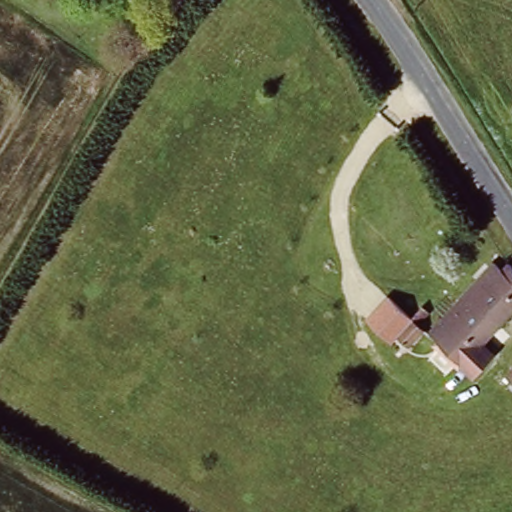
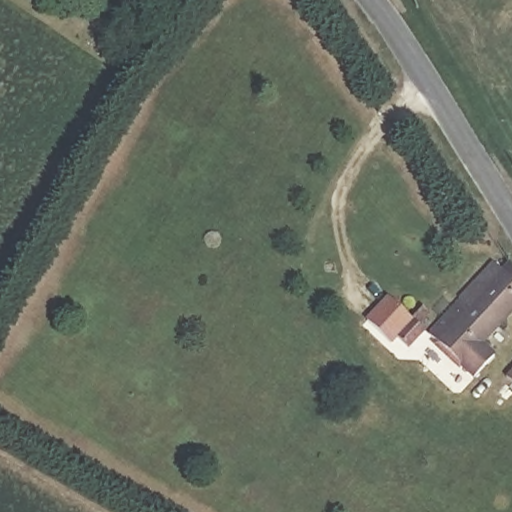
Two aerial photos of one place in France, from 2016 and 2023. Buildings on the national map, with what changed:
unchanged [(489,355),(472,374),(425,333),(490,263),(500,271),(506,265),(512,274),(512,309),(480,346),(489,355)]
unchanged [(425,314),(415,324),(420,332),(395,355),(381,341),(420,306),(425,314)]
unchanged [(500,374),(512,362),(512,383),(510,385),(500,374)]

